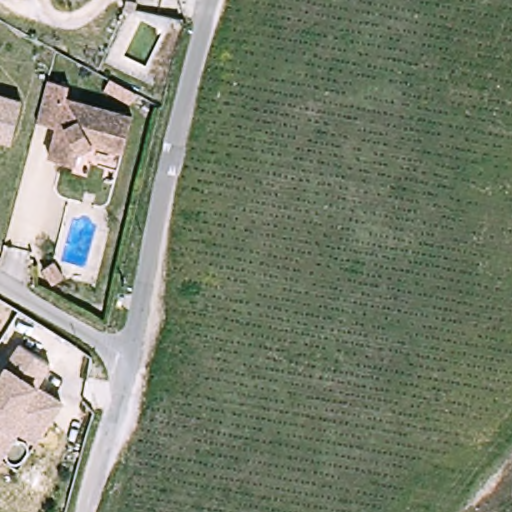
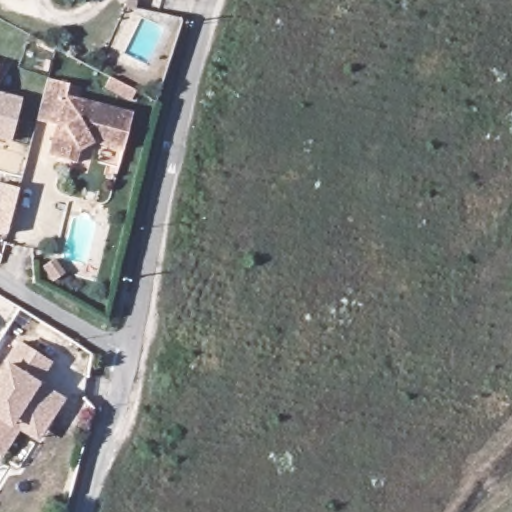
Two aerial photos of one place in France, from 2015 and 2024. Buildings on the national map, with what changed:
unchanged [(140,91),(134,102),(108,89),(114,78),(140,91)]
unchanged [(42,113),(43,110),(51,80),(72,86),(70,98),(137,115),(127,151),(97,143),(82,151),(78,164),(52,157),(60,127),(40,122),(42,113)]
unchanged [(12,141),(0,138),(0,91),(23,97),(12,141)]
new [(20,191),(12,217),(7,236),(0,234),(0,185),(20,191)]
unchanged [(40,440),(20,429),(2,460),(0,458),(0,371),(20,340),(53,360),(42,382),(65,397),(40,440)]

